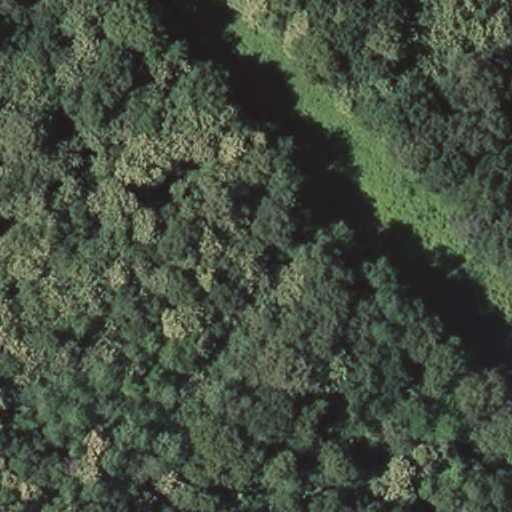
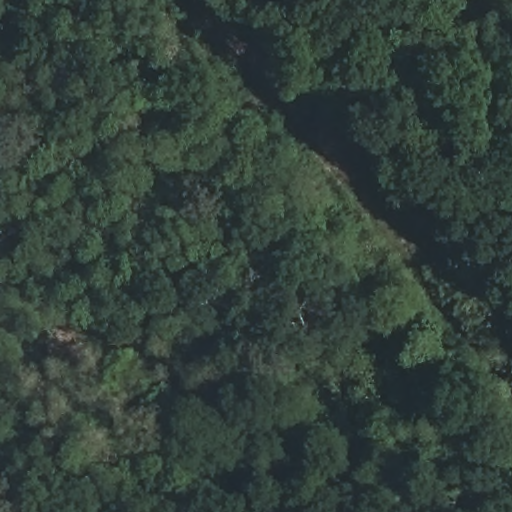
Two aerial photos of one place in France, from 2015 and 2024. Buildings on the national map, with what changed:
[]

